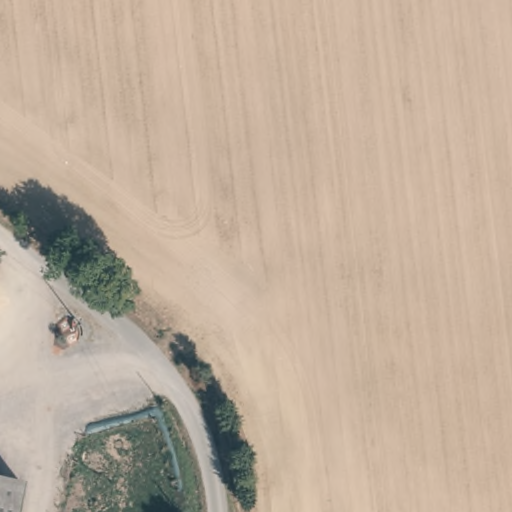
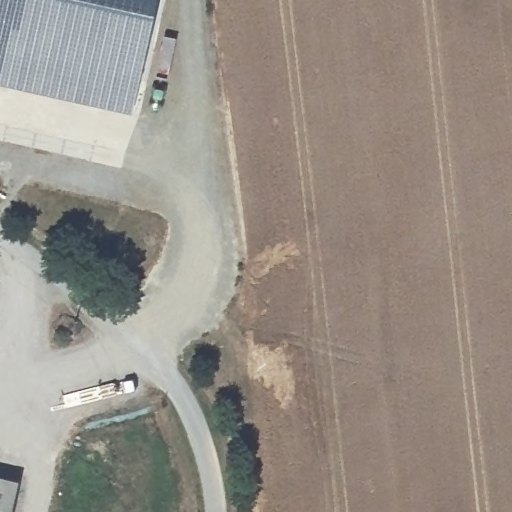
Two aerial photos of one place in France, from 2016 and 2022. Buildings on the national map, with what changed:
new [(133,111),(0,82),(0,0),(157,0),(133,111)]
unchanged [(19,481),(12,512),(0,512),(0,477),(19,481)]

